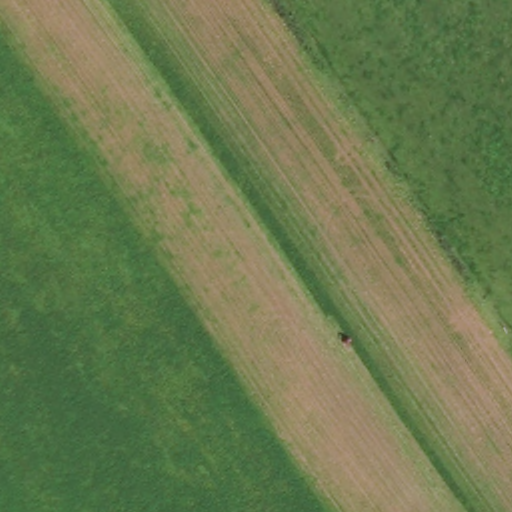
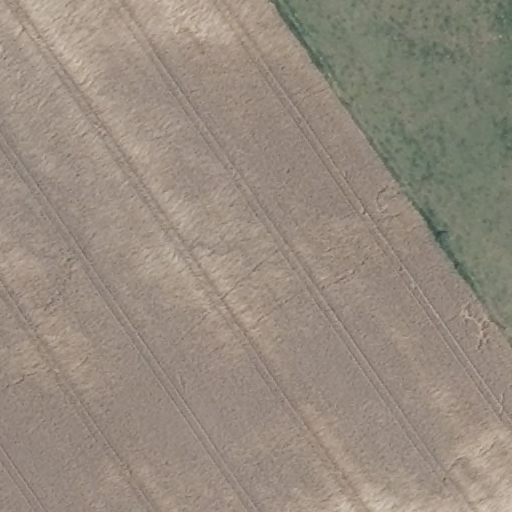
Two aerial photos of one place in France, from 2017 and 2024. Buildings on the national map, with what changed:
[]

